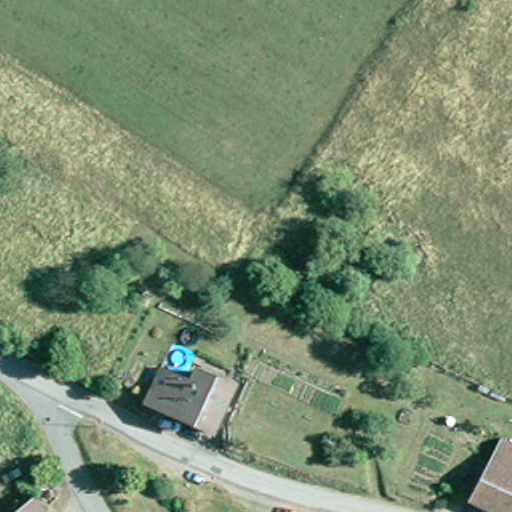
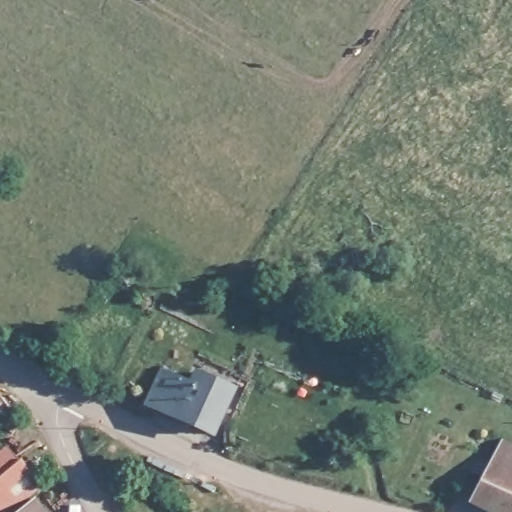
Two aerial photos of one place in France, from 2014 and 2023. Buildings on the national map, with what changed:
unchanged [(230,394),(208,441),(143,409),(160,375),(188,389),(194,376),(227,393),(230,394)]
unchanged [(483,512),(467,504),(488,461),(492,463),(503,438),(512,443),(512,512),(483,512)]
new [(45,485),(32,498),(14,512),(0,512),(0,449),(6,443),(20,458),(45,485)]
unchanged [(177,494),(162,487),(167,476),(182,483),(177,494)]
unchanged [(44,512),(14,512),(32,498),(44,512)]

